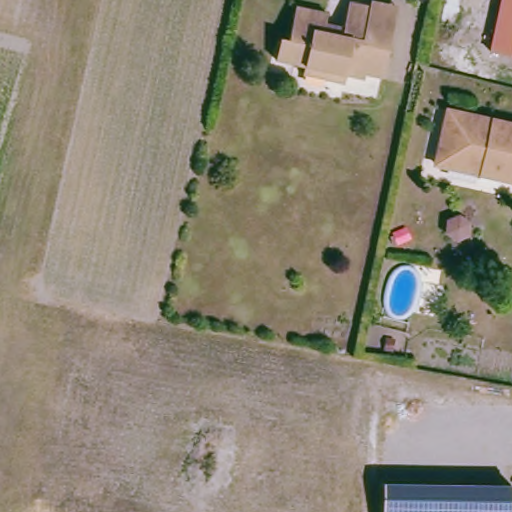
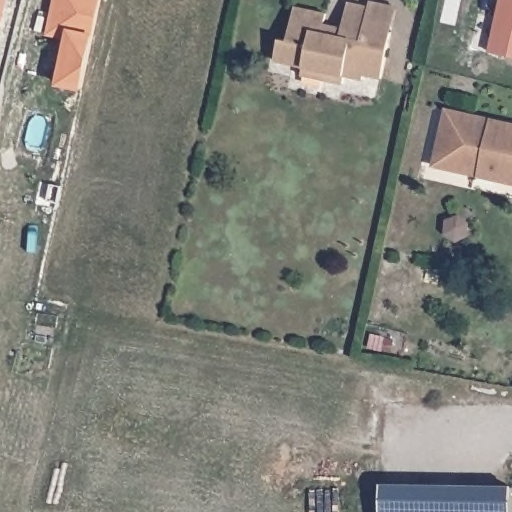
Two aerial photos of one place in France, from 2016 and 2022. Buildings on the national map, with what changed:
new [(0,11),(0,0),(3,0),(0,11)]
new [(67,39),(48,34),(55,0),(101,0),(95,33),(82,90),(59,85),(67,39)]
unchanged [(454,30),(440,26),(445,0),(460,0),(454,30)]
new [(509,27),(510,19),(505,18),(510,0),(512,0),(512,55),(497,51),(504,25),(509,27)]
unchanged [(307,62),(294,59),(292,64),(277,61),(280,41),(290,42),(295,8),(327,15),(325,26),(345,30),(350,6),(370,10),(372,4),(397,10),(392,35),(384,79),(367,75),(364,81),(346,77),(344,86),(323,82),(304,78),(306,68),(307,62)]
unchanged [(433,164),(440,139),(445,118),(447,108),(471,113),(512,123),(512,183),(478,174),(445,167),(433,164)]
unchanged [(512,512),(383,512),(383,499),(383,482),(512,483),(512,491),(512,512)]

